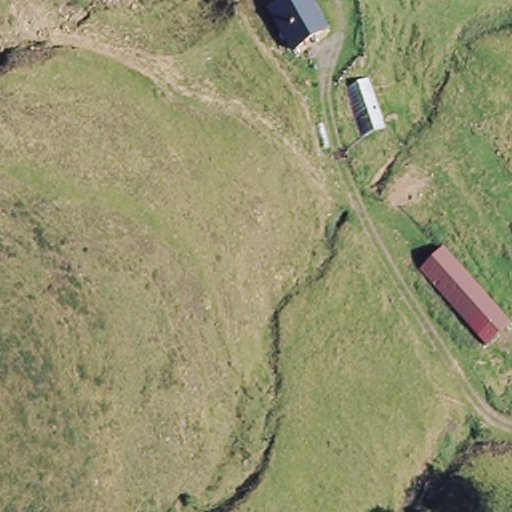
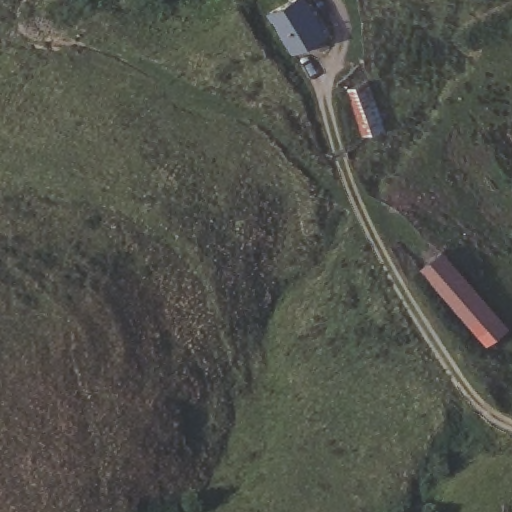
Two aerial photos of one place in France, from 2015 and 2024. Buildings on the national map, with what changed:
unchanged [(295,55),(271,12),(293,0),(307,0),(330,36),(295,55)]
unchanged [(383,134),(361,140),(345,91),(365,86),(383,134)]
unchanged [(512,326),(488,347),(420,272),(443,253),(512,326)]

